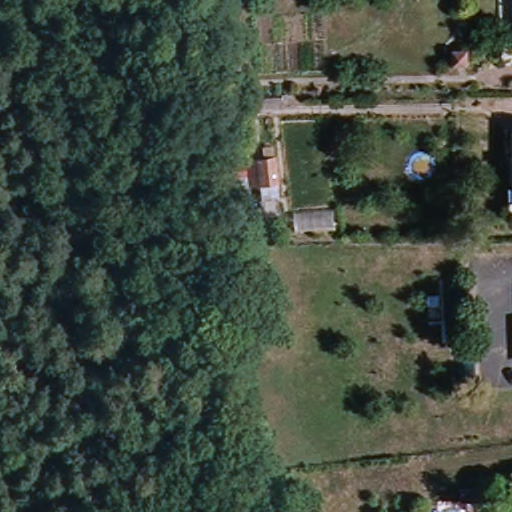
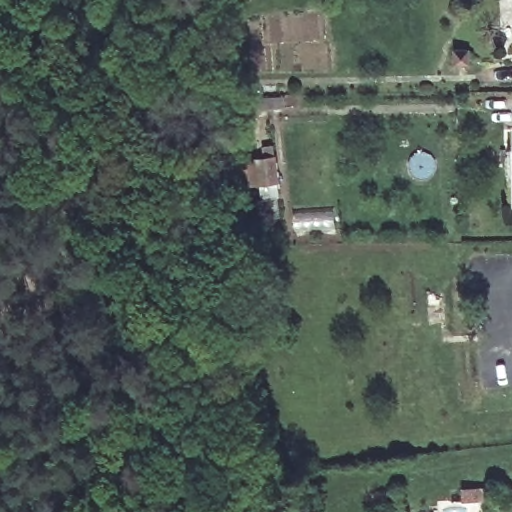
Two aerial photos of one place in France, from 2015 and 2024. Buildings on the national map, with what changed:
unchanged [(473,39),(488,38),(488,53),(473,54),(473,39)]
unchanged [(277,154),(279,181),(250,185),(246,157),(277,154)]
unchanged [(475,485),(501,484),(501,498),(476,498),(475,485)]

